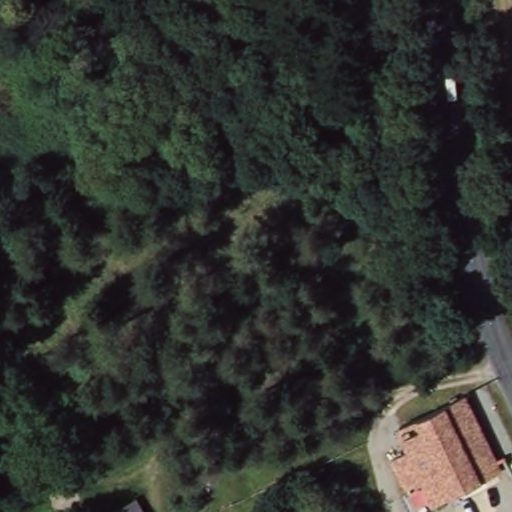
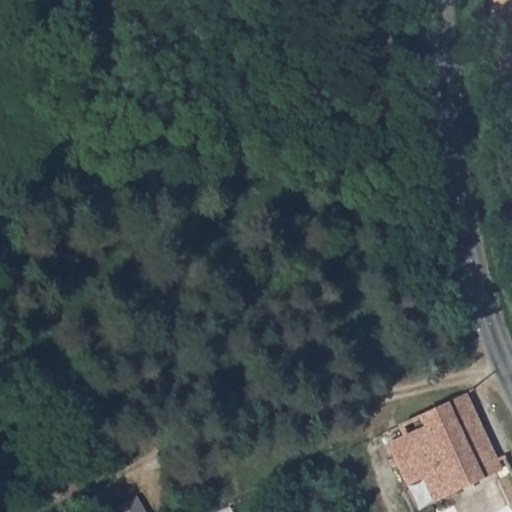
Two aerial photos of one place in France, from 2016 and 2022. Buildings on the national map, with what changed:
unchanged [(507,465),(439,500),(430,482),(417,489),(399,457),(413,451),(401,430),(424,417),(449,405),(469,395),(507,465)]

